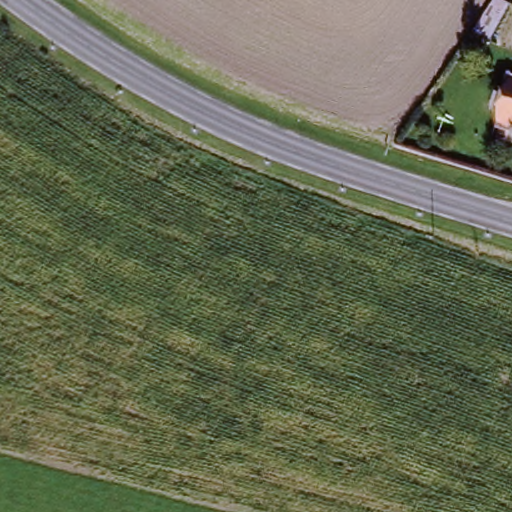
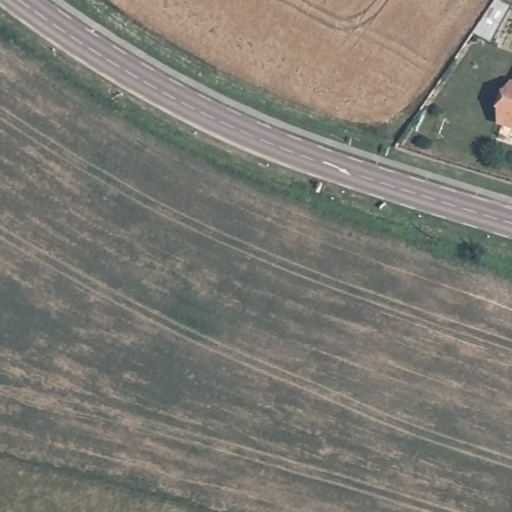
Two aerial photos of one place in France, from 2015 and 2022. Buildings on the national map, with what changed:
unchanged [(500,125),(511,86),(512,86),(512,128),(500,125)]

